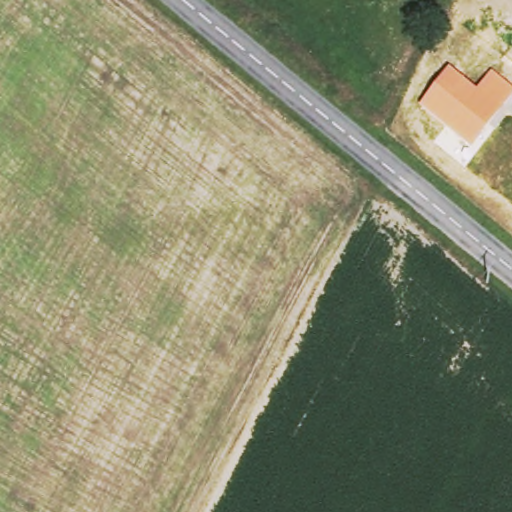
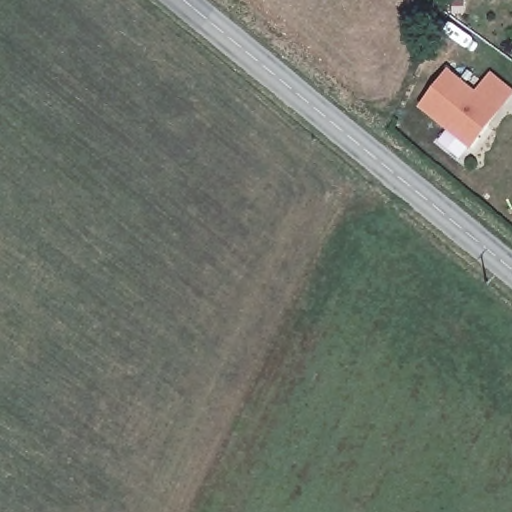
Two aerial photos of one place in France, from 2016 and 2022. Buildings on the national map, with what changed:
unchanged [(512,90),(512,98),(471,151),(416,109),(447,70),(476,92),(490,72),(512,90)]

